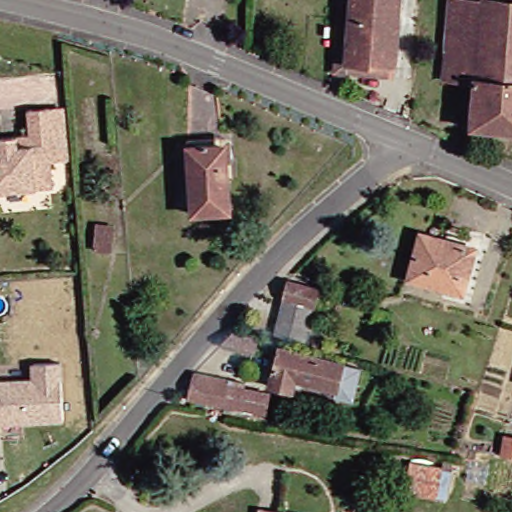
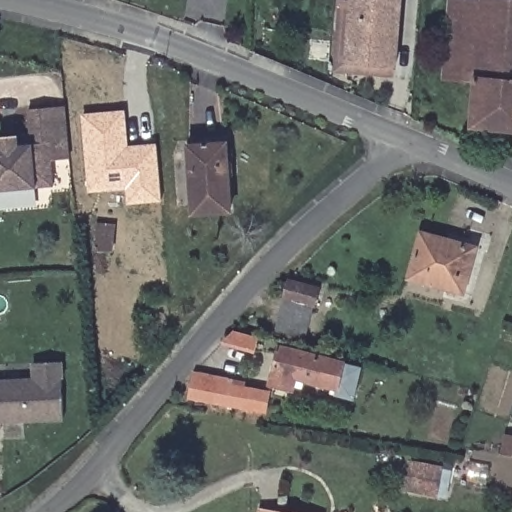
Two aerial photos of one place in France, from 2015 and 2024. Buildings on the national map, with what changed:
unchanged [(391,0),(386,66),(382,66),(337,63),(342,1),(342,0),(391,0)]
unchanged [(466,129),(470,81),(438,79),(445,0),(472,0),(477,1),(477,0),(512,0),(512,133),(466,129)]
unchanged [(337,63),(382,66),(382,76),(326,71),(331,1),(342,1),(337,63)]
unchanged [(0,138),(9,138),(25,136),(23,111),(45,109),(45,111),(60,110),(62,143),(64,160),(46,161),(48,187),(0,192),(0,138)]
new [(127,146),(157,144),(161,203),(127,206),(126,189),(89,194),(82,114),(125,110),(127,146)]
unchanged [(189,218),(185,151),(185,144),(221,141),(223,181),(226,216),(189,218)]
unchanged [(95,250),(97,229),(98,224),(115,226),(114,231),(112,251),(95,250)]
unchanged [(405,273),(417,229),(462,241),(471,243),(463,271),(458,288),(405,273)]
unchanged [(315,289),(311,306),(309,306),(300,341),(270,333),(283,281),(315,289)]
unchanged [(227,334),(252,340),(250,350),(219,342),(227,334)]
unchanged [(268,342),(268,343),(277,346),(276,348),(357,369),(348,401),(330,396),(332,388),(290,378),(287,390),(266,385),(275,352),(260,348),(262,340),(268,342)]
unchanged [(0,423),(0,382),(35,381),(34,364),(62,363),(64,420),(0,423)]
unchanged [(187,377),(191,372),(240,383),(239,390),(262,394),(258,413),(183,398),(187,377)]
unchanged [(505,437),(512,438),(512,457),(502,456),(505,437)]
unchanged [(442,499),(432,497),(401,491),(406,462),(438,468),(447,469),(442,499)]
unchanged [(257,509),(278,512),(256,512),(257,509)]

